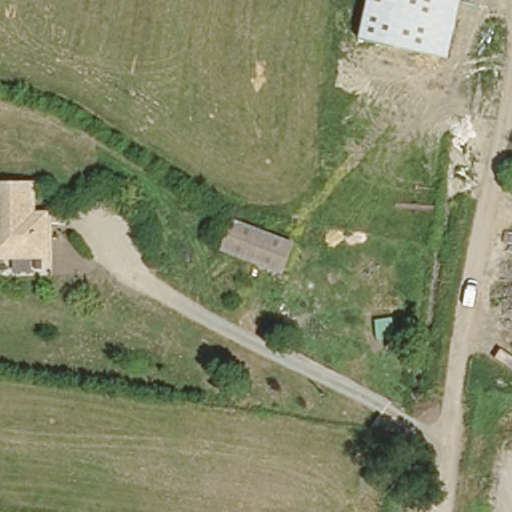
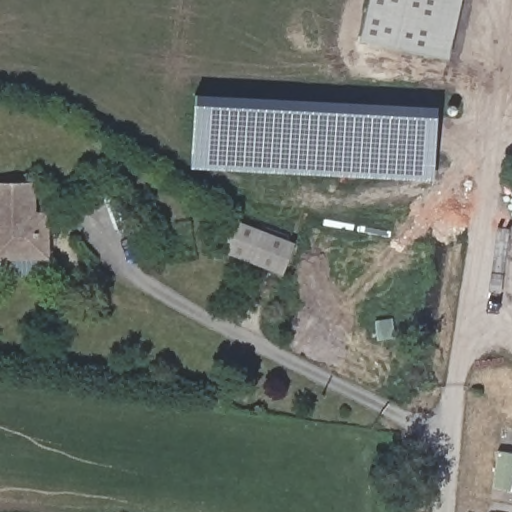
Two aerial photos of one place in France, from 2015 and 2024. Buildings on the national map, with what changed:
unchanged [(461,0),(448,60),(358,40),(367,0),(461,0)]
new [(219,98),(219,95),(437,106),(433,180),(192,167),(195,96),(219,98)]
unchanged [(33,211),(47,211),(48,259),(0,260),(0,181),(32,181),(33,211)]
unchanged [(294,242),(280,274),(217,250),(231,217),(294,242)]

